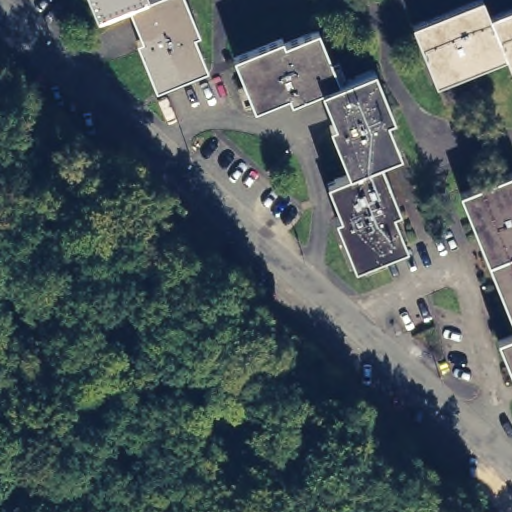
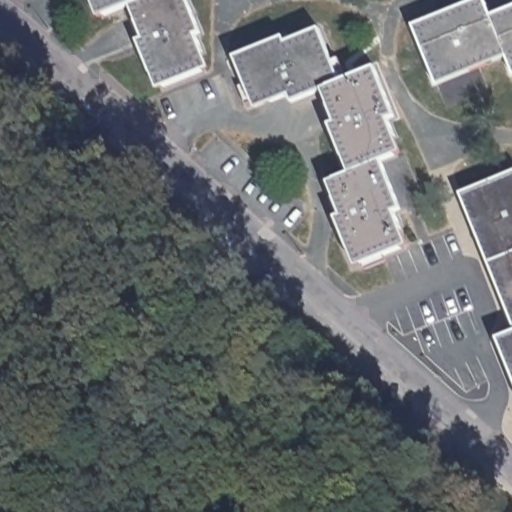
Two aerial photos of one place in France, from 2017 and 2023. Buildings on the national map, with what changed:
unchanged [(197,35),(192,37),(203,67),(149,87),(132,41),(139,39),(125,5),(92,15),(87,0),(184,0),(197,35)]
unchanged [(481,0),(485,0),(494,17),(512,10),(512,70),(507,56),(440,81),(417,26),(481,0)]
unchanged [(236,58),(282,41),(284,44),(321,30),(342,82),(377,70),(396,119),(391,121),(405,156),(384,163),(403,213),(397,217),(409,248),(357,267),(341,221),(347,220),(334,183),(353,175),(334,128),(339,126),(326,90),(292,103),(291,98),(257,111),(236,58)]
unchanged [(467,194),(512,176),(512,305),(467,194)]
unchanged [(507,339),(512,337),(512,351),(507,339)]

